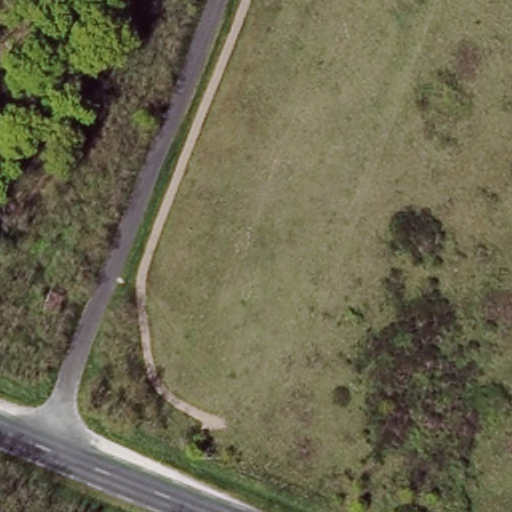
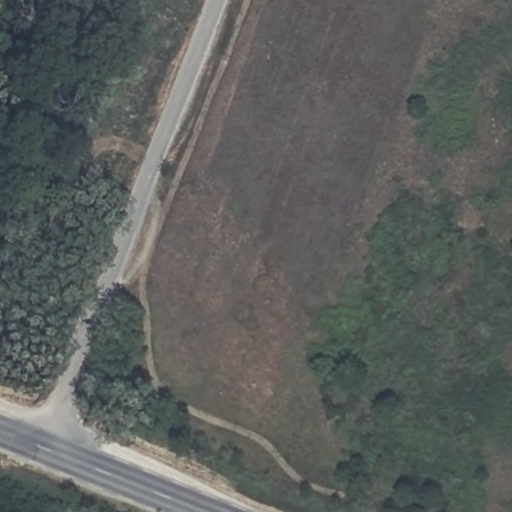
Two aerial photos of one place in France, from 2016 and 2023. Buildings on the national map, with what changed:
unchanged [(57,315),(40,310),(50,290),(63,295),(57,315)]

